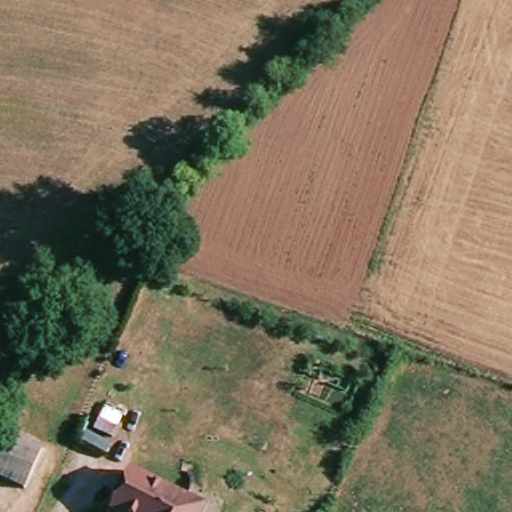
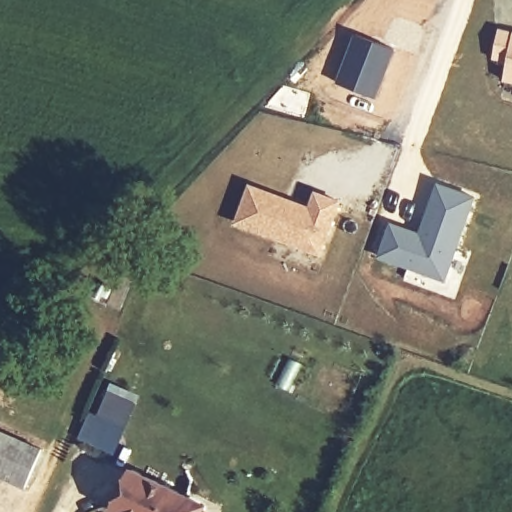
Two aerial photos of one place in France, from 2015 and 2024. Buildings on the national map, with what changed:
new [(504,82),(508,61),(492,60),(500,29),(512,31),(512,83),(504,82)]
new [(355,33),(395,49),(376,100),(335,83),(355,33)]
new [(285,82),(289,85),(312,92),(305,117),(263,106),(285,82)]
new [(390,220),(418,230),(437,181),(477,197),(445,285),(375,258),(390,220)]
new [(342,201),(322,257),(235,225),(250,184),(310,206),(316,191),(342,201)]
unchanged [(0,478),(0,452),(4,438),(46,451),(35,488),(0,478)]
unchanged [(211,512),(127,512),(144,477),(211,512)]

